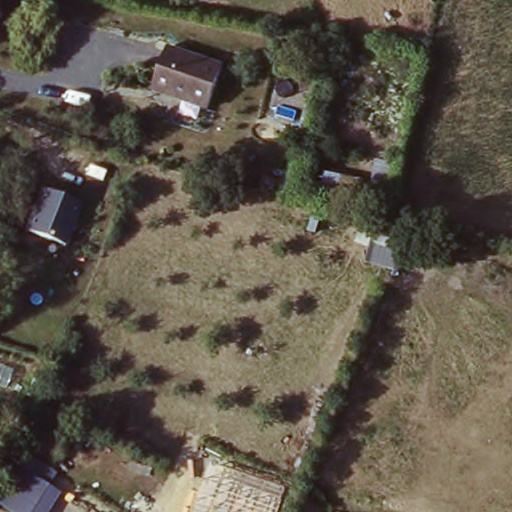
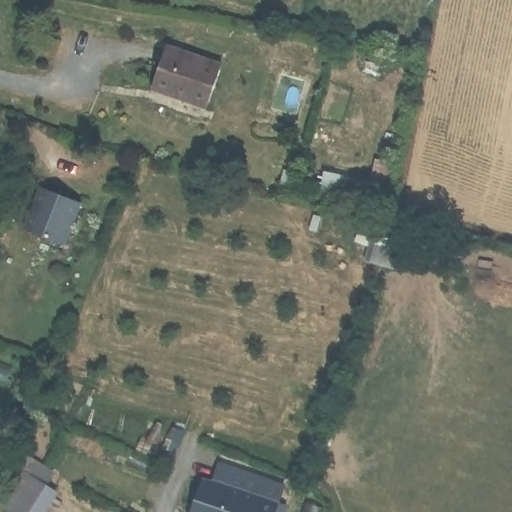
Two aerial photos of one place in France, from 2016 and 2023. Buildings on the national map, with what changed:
unchanged [(220,71),(205,109),(149,88),(164,51),(220,71)]
unchanged [(397,161),(389,206),(365,202),(372,159),(397,161)]
unchanged [(41,189),(77,201),(64,243),(27,226),(41,189)]
unchanged [(21,453),(54,473),(47,484),(56,490),(44,512),(3,512),(0,510),(0,487),(14,464),(21,453)]
new [(202,481),(211,485),(219,465),(284,488),(276,512),(192,512),(202,481)]

